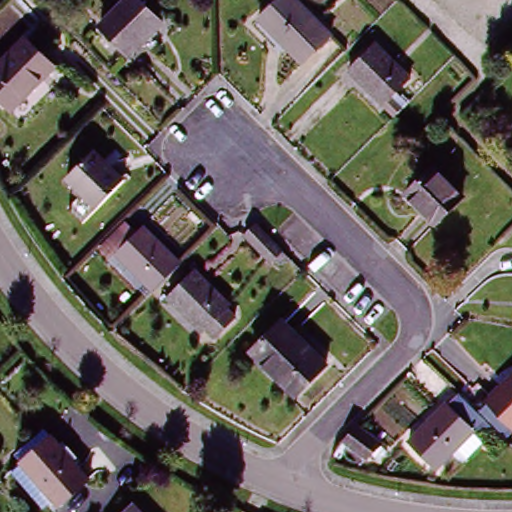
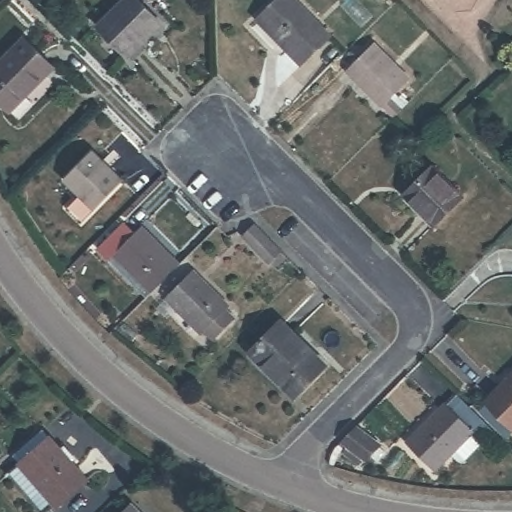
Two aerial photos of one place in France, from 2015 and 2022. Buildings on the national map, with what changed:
unchanged [(132,0),(158,28),(125,57),(96,27),(121,0),(132,0)]
unchanged [(296,72),(255,27),(285,0),(292,0),(329,40),(296,72)]
unchanged [(380,130),(371,119),(385,105),(349,69),(377,41),(411,77),(395,97),(404,107),(380,130)]
unchanged [(52,72),(13,111),(0,99),(0,68),(26,42),(52,72)]
unchanged [(123,181),(93,209),(63,179),(93,152),(123,181)]
unchanged [(398,200),(432,168),(447,185),(461,200),(428,230),(415,216),(398,200)]
unchanged [(124,224),(137,236),(142,233),(181,271),(150,300),(113,264),(105,270),(91,255),(124,224)]
unchanged [(287,260),(276,271),(251,245),(263,234),(287,260)]
unchanged [(195,280),(229,313),(203,337),(170,303),(195,280)]
unchanged [(321,368),(291,396),(250,353),(279,325),(321,368)]
unchanged [(512,378),(512,420),(491,399),(512,378)]
unchanged [(463,467),(450,455),(430,473),(405,446),(440,412),(458,429),(469,419),(491,442),(463,467)]
unchanged [(356,430),(378,451),(363,465),(341,445),(356,430)]
unchanged [(82,480),(57,505),(20,467),(45,442),(82,480)]
unchanged [(137,512),(123,512),(130,505),(137,512)]

